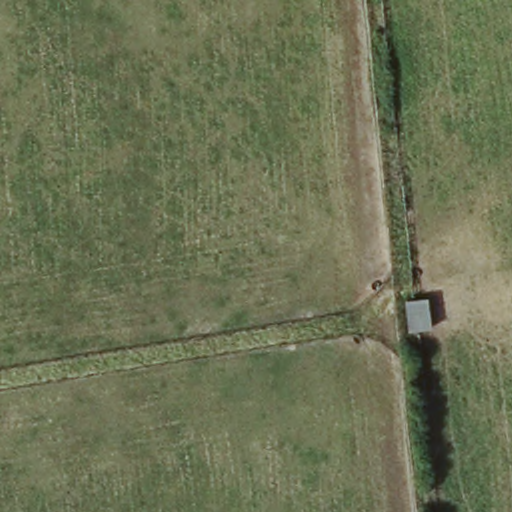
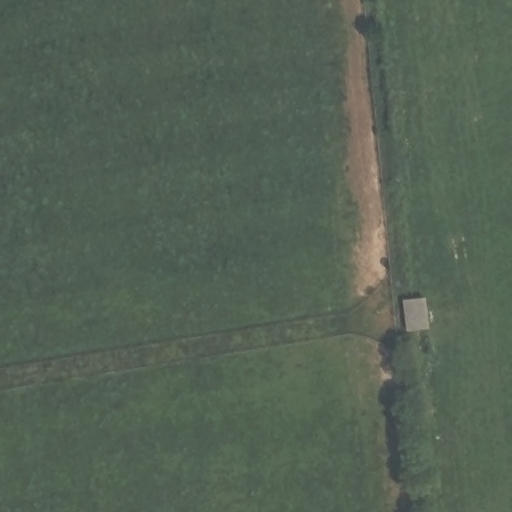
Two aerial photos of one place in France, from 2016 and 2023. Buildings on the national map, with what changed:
unchanged [(429,301),(433,333),(408,336),(404,305),(429,301)]

